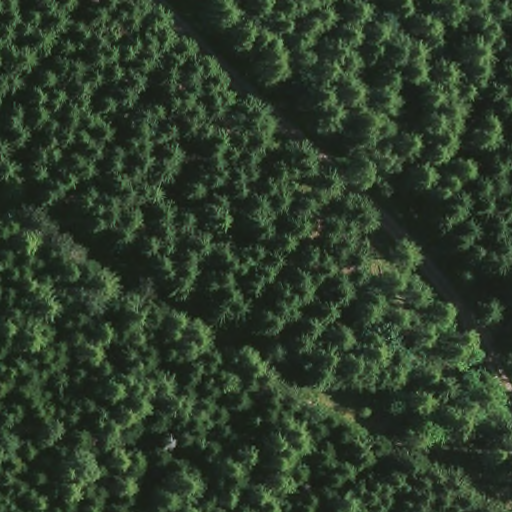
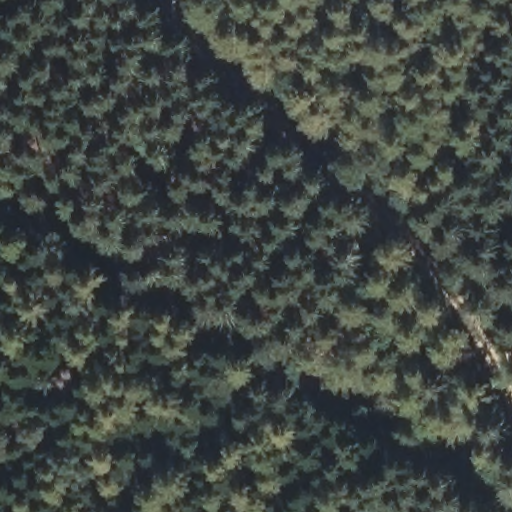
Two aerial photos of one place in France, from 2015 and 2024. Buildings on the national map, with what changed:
[]

